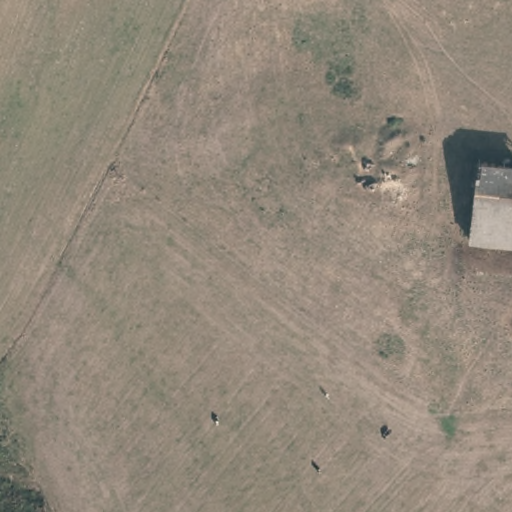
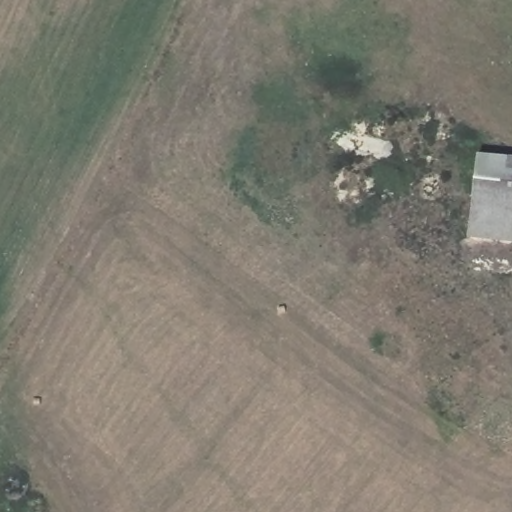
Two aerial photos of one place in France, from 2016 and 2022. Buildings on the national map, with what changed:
unchanged [(469,236),(478,153),(512,157),(512,241),(469,236)]

